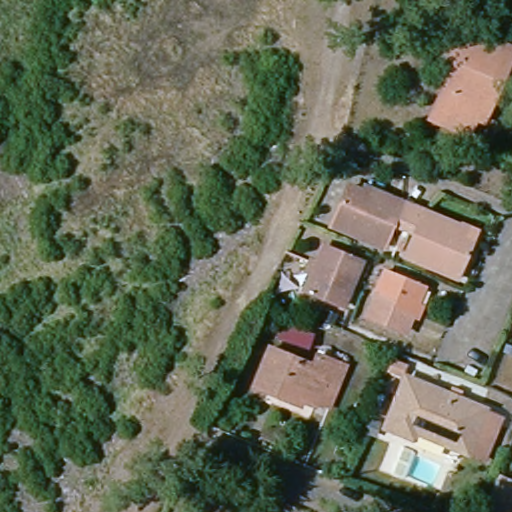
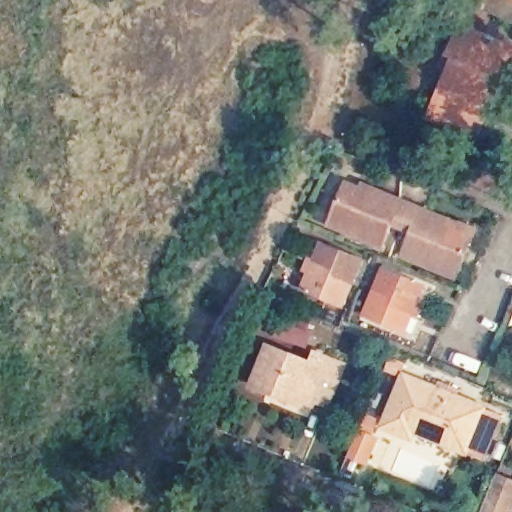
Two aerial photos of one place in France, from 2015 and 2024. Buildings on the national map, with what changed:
unchanged [(486,108),(479,124),(443,109),(469,49),(462,46),(474,19),(512,36),(512,71),(509,78),(495,111),(486,108)]
unchanged [(368,187),(370,183),(462,222),(461,226),(476,233),(460,272),(410,251),(419,228),(396,218),(386,241),(336,220),(353,181),(368,187)]
unchanged [(308,270),(312,262),(317,264),(324,248),(335,252),(336,249),(350,255),(349,258),(361,262),(343,306),(331,300),(329,303),(315,297),(316,294),(306,289),(313,272),(308,270)]
unchanged [(401,278),(403,274),(418,280),(416,283),(426,288),(419,304),(424,306),(420,315),(414,313),(407,330),(397,326),(395,329),(382,323),(383,320),(370,314),(389,272),(401,278)]
unchanged [(318,340),(309,358),(273,341),(280,323),(318,340)]
unchanged [(313,366),(317,356),(344,367),(339,381),(327,376),(313,404),(301,399),(299,404),(254,384),(270,348),(313,366)]
unchanged [(467,445),(414,425),(411,431),(386,421),(406,374),(501,411),(491,433),(483,452),(467,445)]
unchanged [(367,413),(377,417),(372,429),(363,425),(367,413)]
unchanged [(507,512),(496,512),(488,509),(499,481),(512,486),(512,501),(507,512)]

